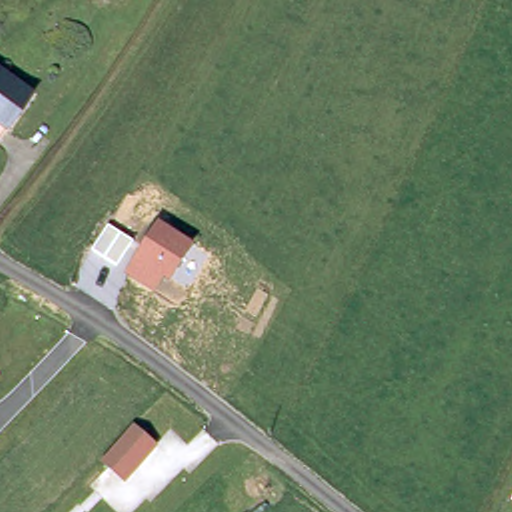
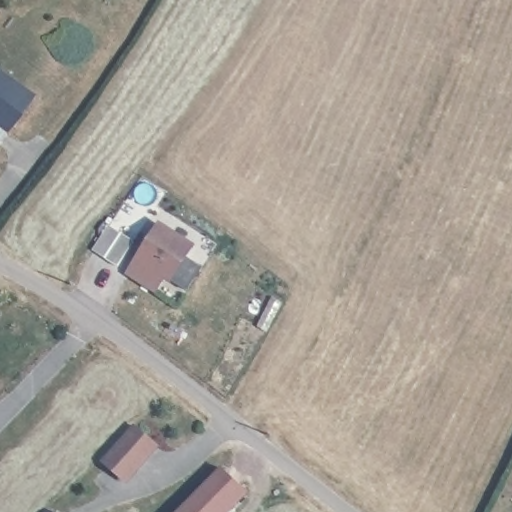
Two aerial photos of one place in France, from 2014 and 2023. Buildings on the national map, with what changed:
unchanged [(0,129),(0,72),(34,96),(5,132),(0,129)]
unchanged [(195,246),(170,286),(161,281),(152,295),(122,275),(157,221),(195,246)]
unchanged [(135,243),(117,270),(91,254),(107,225),(135,243)]
unchanged [(132,425),(157,443),(127,482),(103,460),(132,425)]
new [(248,493),(229,512),(178,512),(222,467),(248,493)]

